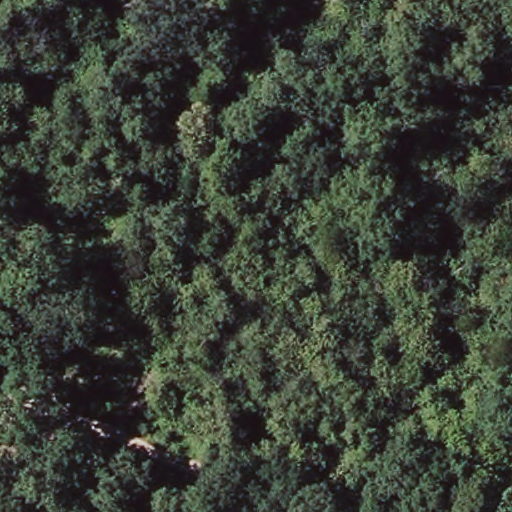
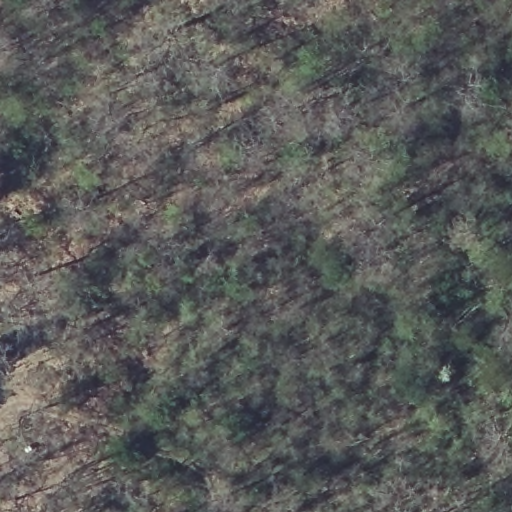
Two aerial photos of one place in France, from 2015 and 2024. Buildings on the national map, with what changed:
[]

